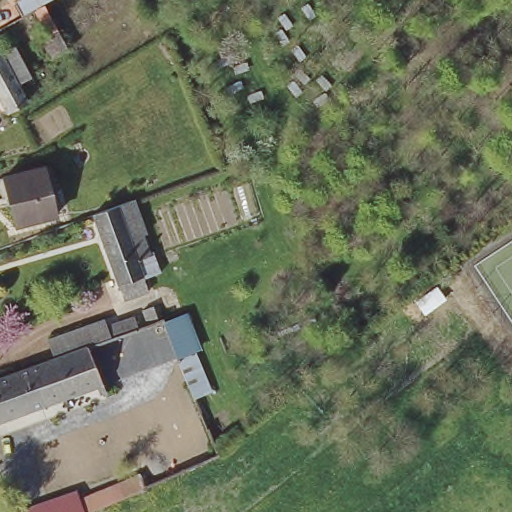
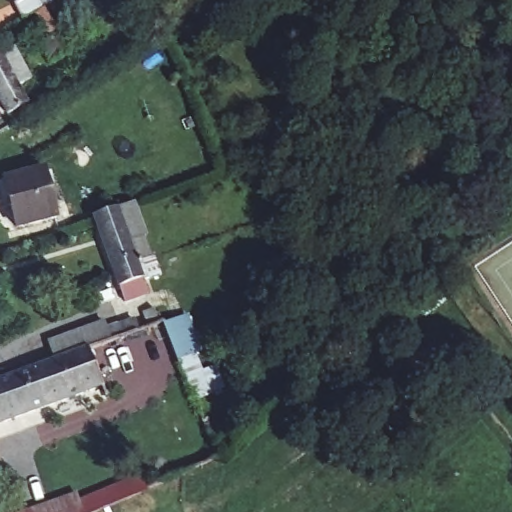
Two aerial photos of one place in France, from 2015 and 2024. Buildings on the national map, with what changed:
unchanged [(36,46),(44,42),(32,18),(25,22),(18,6),(31,0),(65,0),(50,8),(41,13),(63,53),(45,62),(36,46)]
unchanged [(5,112),(0,103),(0,52),(6,62),(19,55),(34,80),(21,87),(28,98),(5,112)]
unchanged [(6,183),(45,173),(52,195),(59,220),(19,231),(15,217),(6,183)]
unchanged [(168,282),(147,290),(125,298),(95,215),(118,206),(117,204),(136,196),(149,230),(143,232),(151,254),(157,251),(168,282)]
unchanged [(137,320),(149,315),(153,325),(141,329),(137,320)]
unchanged [(196,400),(182,368),(177,358),(167,322),(194,317),(205,349),(197,352),(215,392),(196,400)]
unchanged [(133,322),(137,331),(117,338),(81,353),(65,359),(58,342),(112,321),(114,329),(133,322)]
unchanged [(65,359),(81,353),(96,390),(0,429),(0,384),(65,359)]
unchanged [(78,499),(133,475),(139,488),(140,491),(134,494),(99,509),(94,512),(22,512),(75,493),(78,499)]

